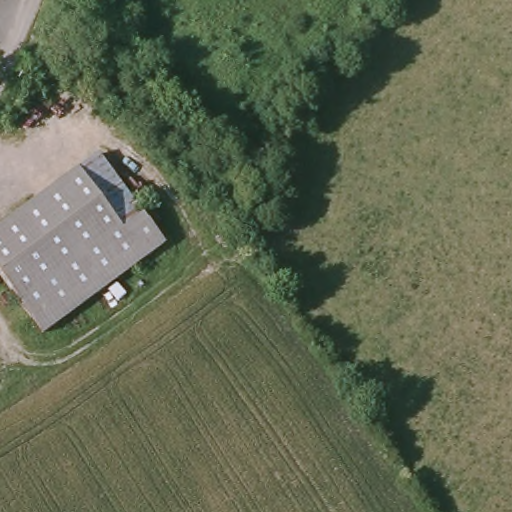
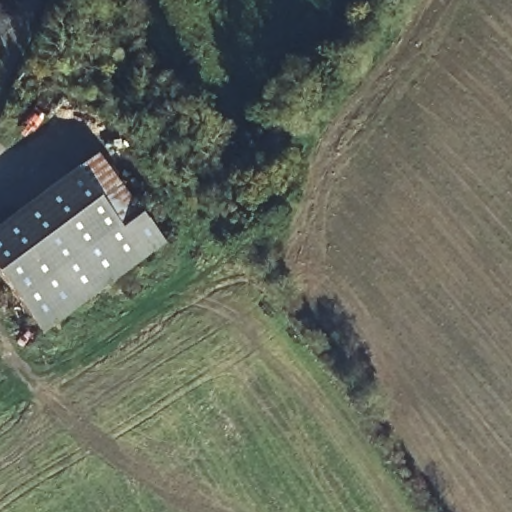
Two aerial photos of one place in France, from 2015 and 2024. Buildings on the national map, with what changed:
unchanged [(39,334),(0,280),(0,222),(96,158),(162,247),(39,334)]

